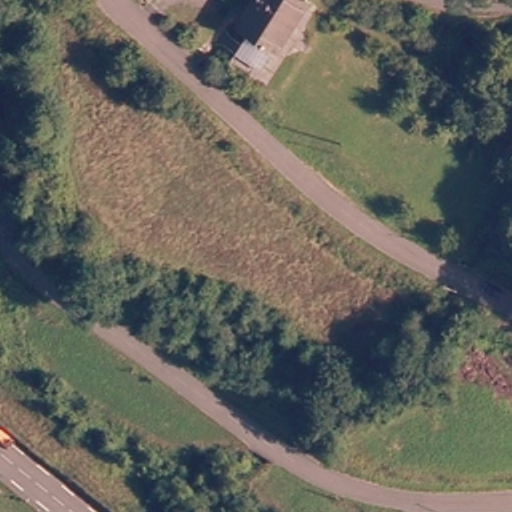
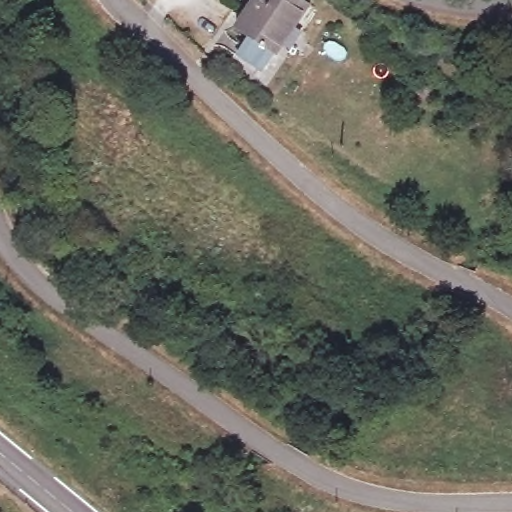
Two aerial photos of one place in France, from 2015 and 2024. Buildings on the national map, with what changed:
unchanged [(258,64),(238,44),(250,31),(234,18),(248,0),(308,0),(309,1),(258,64)]

